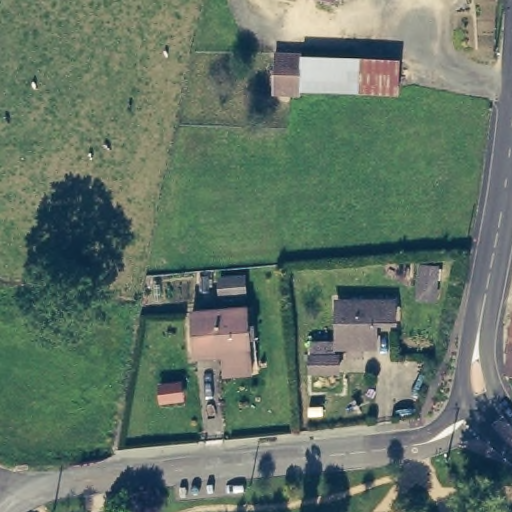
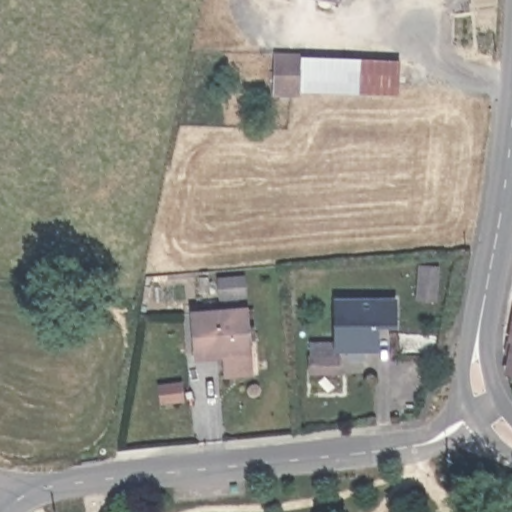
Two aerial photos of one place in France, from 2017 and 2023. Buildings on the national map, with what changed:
unchanged [(302,55),(302,58),(404,63),(400,98),(275,93),(279,54),(302,55)]
unchanged [(435,268),(432,296),(418,295),(420,267),(435,268)]
unchanged [(235,287),(237,303),(221,304),(220,288),(235,287)]
unchanged [(397,298),(397,324),(381,324),(381,347),(342,346),(342,299),(397,298)]
unchanged [(247,307),(248,324),(257,325),(257,333),(249,334),(252,371),(224,374),(222,353),(194,354),(189,312),(247,307)]
unchanged [(512,307),(512,372),(500,369),(503,357),(495,356),(498,338),(507,339),(512,307)]
unchanged [(337,357),(337,377),(312,377),(312,356),(337,357)]

